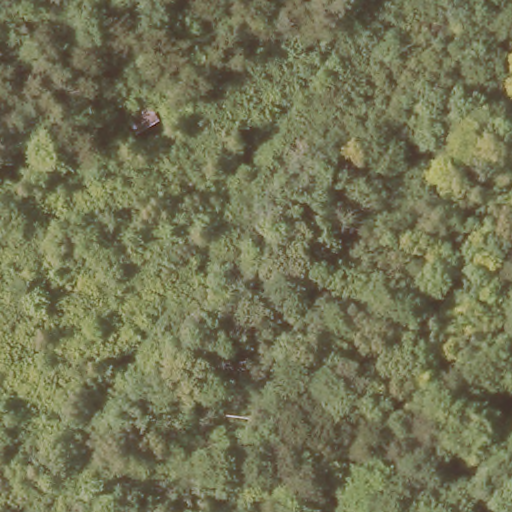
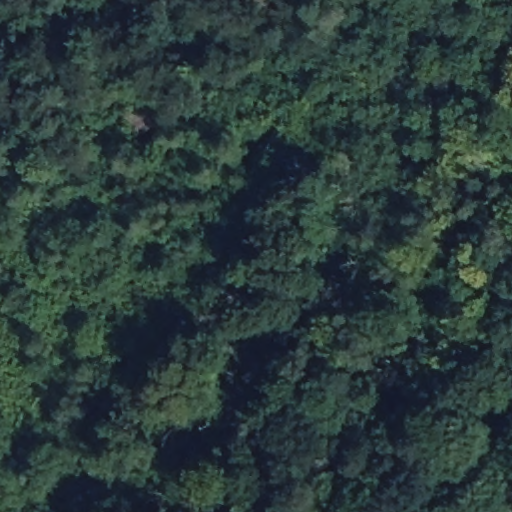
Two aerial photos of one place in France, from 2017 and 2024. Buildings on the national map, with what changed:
unchanged [(125,122),(146,106),(161,122),(136,138),(125,122)]

